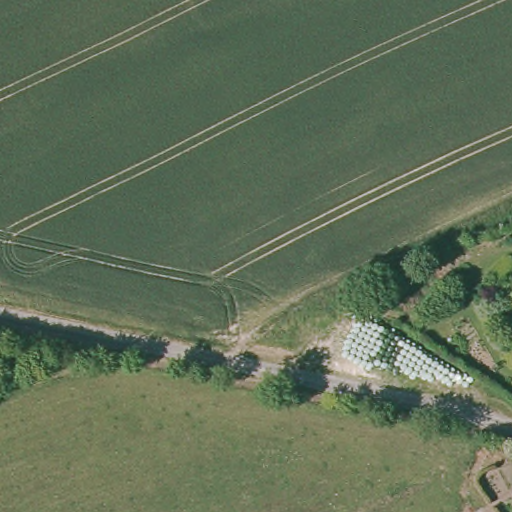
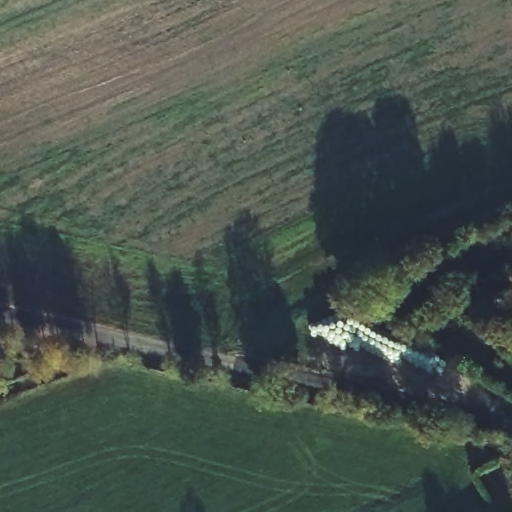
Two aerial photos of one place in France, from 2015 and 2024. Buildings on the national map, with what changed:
[]

